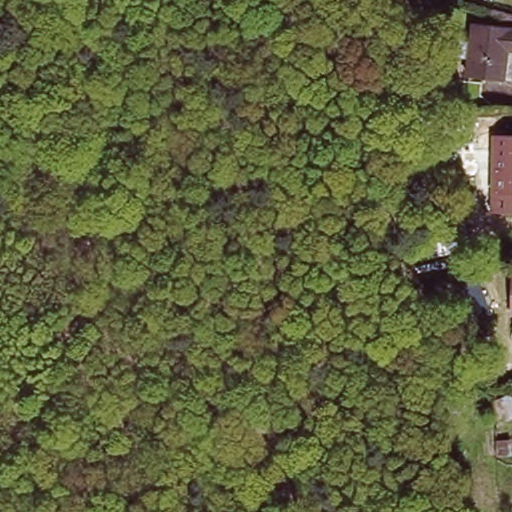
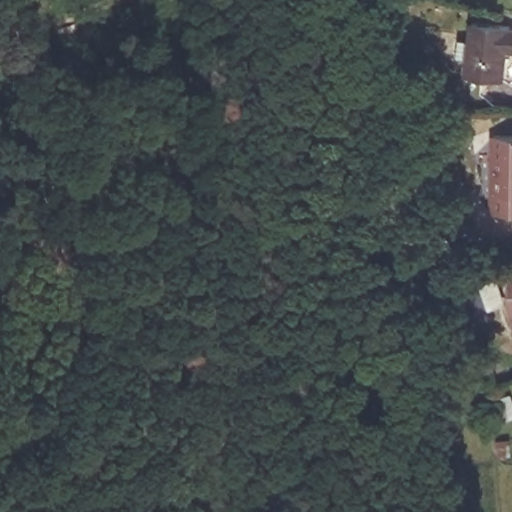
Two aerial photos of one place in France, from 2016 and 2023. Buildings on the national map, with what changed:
unchanged [(508,74),(472,71),(473,54),(462,53),(465,31),(476,32),(477,15),(512,18),(512,42),(511,42),(508,74)]
unchanged [(489,204),(494,127),(512,129),(512,206),(489,204)]
unchanged [(404,216),(427,206),(444,249),(420,259),(404,216)]

